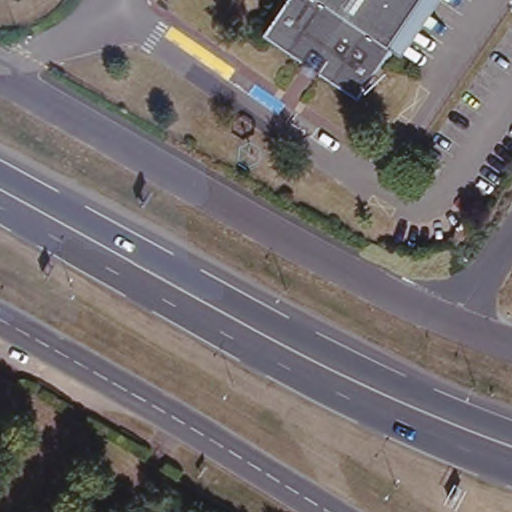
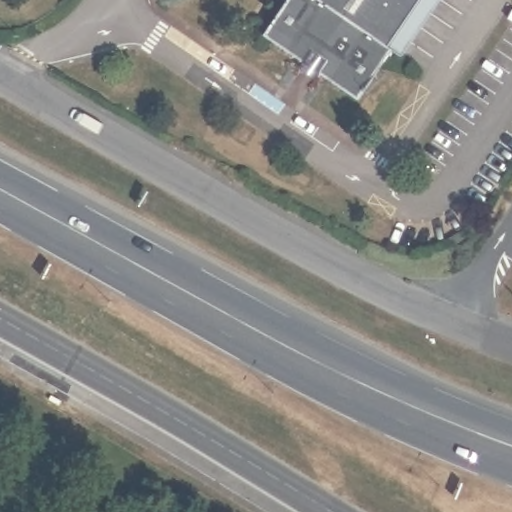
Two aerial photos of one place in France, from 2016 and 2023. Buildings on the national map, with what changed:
unchanged [(265,31),(287,0),(419,0),(390,43),(393,45),(359,95),(320,69),(315,75),(300,64),(305,58),(265,31)]
unchanged [(393,45),(390,43),(419,0),(438,0),(403,52),(393,45)]

